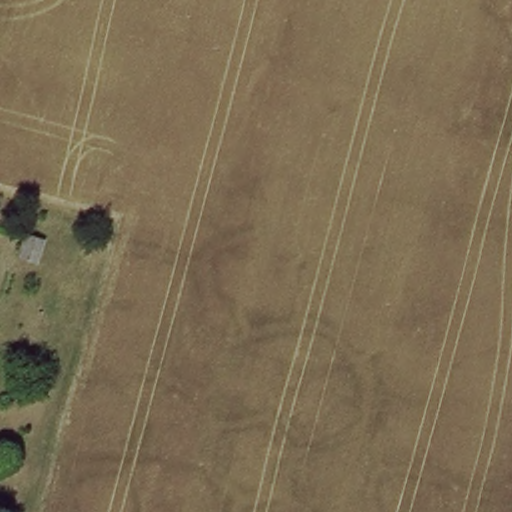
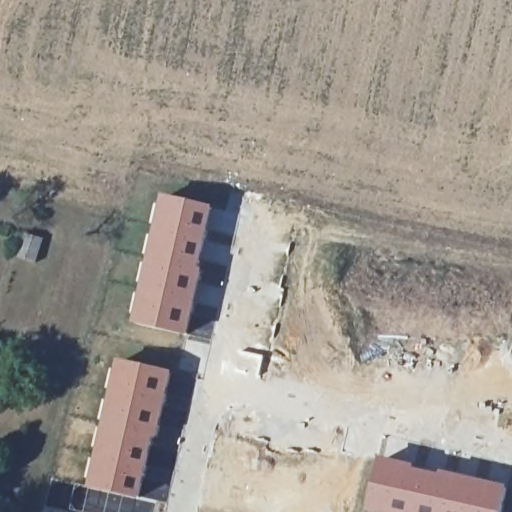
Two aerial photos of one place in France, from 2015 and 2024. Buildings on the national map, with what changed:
new [(147,257),(163,195),(215,206),(205,255),(202,280),(188,336),(134,323),(147,257)]
new [(97,443),(103,411),(117,358),(174,371),(162,423),(139,500),(87,488),(97,443)]
new [(403,462),(427,469),(452,472),(509,486),(503,512),(368,512),(380,457),(403,462)]

